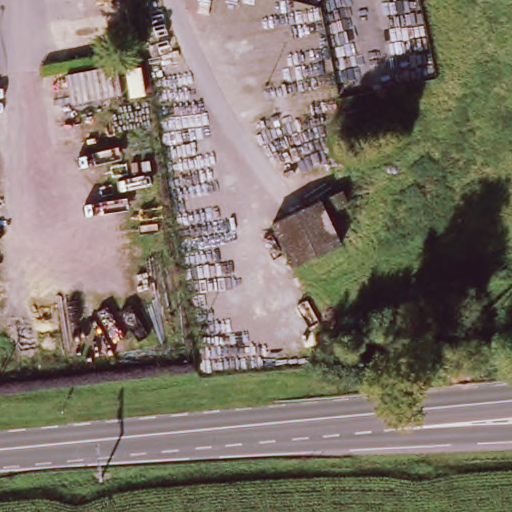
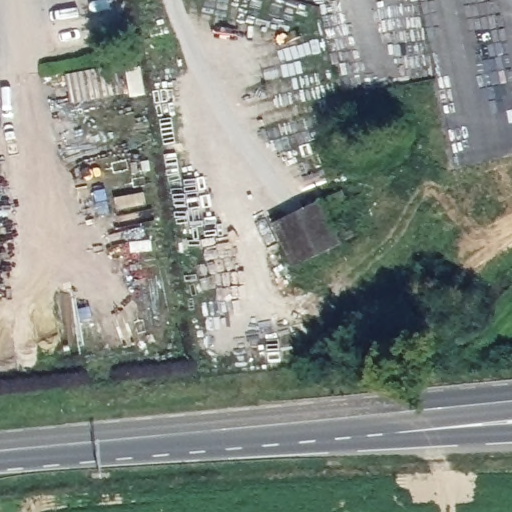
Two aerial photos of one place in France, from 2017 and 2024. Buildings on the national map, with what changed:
unchanged [(142,65),(145,95),(96,100),(96,112),(76,114),(76,102),(60,102),(58,75),(142,65)]
unchanged [(326,201),(346,246),(293,270),(271,225),(326,201)]

